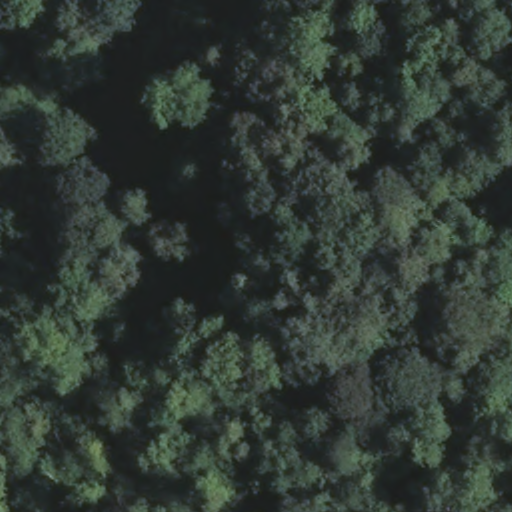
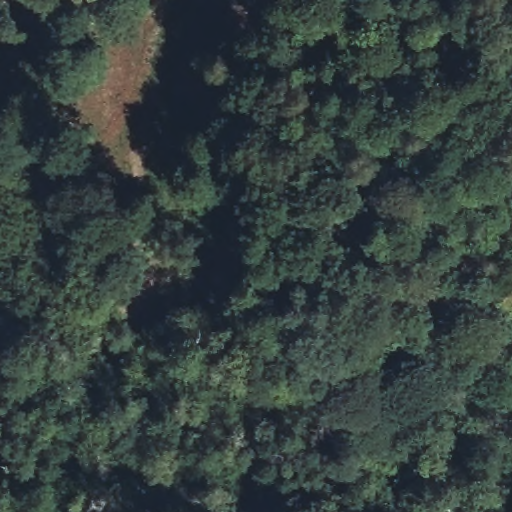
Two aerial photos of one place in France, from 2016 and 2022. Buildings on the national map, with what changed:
[]

